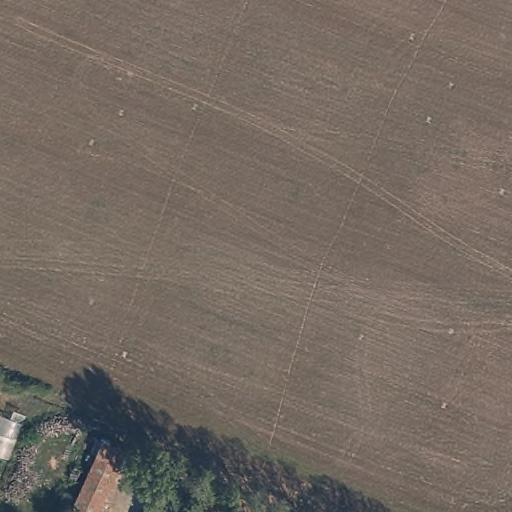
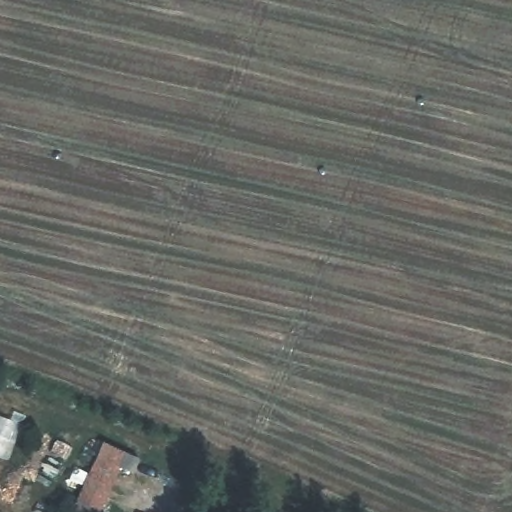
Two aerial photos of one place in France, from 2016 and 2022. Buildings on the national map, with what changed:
unchanged [(95,456),(92,455),(98,441),(126,453),(119,467),(99,512),(72,512),(70,511),(95,456)]

